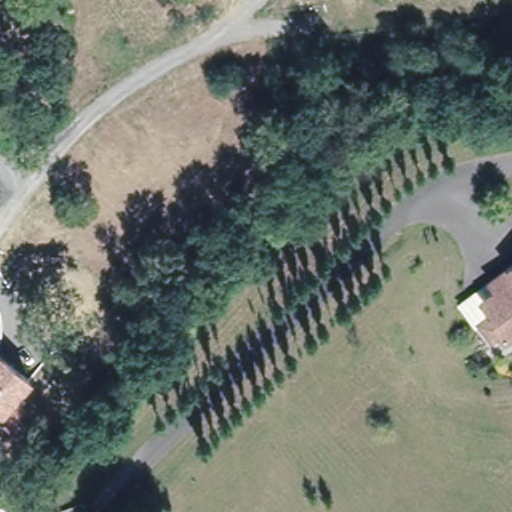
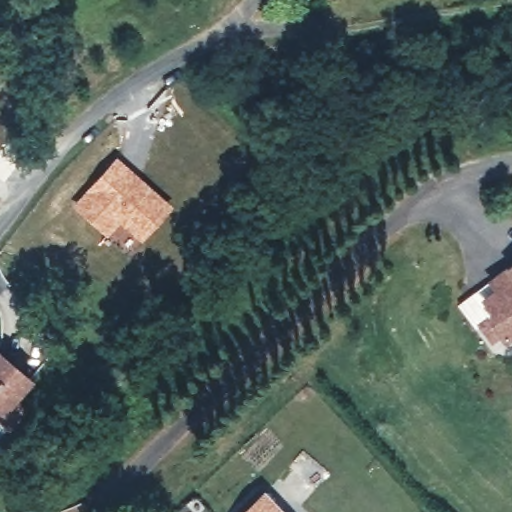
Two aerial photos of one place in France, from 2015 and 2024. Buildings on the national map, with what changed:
new [(172,205),(141,240),(120,221),(106,236),(74,206),(117,156),(172,205)]
unchanged [(502,331),(493,338),(483,324),(498,312),(485,296),(498,287),(491,277),(512,261),(512,331),(506,336),(502,331)]
unchanged [(33,379),(17,396),(30,406),(9,430),(0,423),(0,353),(33,379)]
new [(275,512),(245,512),(260,497),(275,512)]

